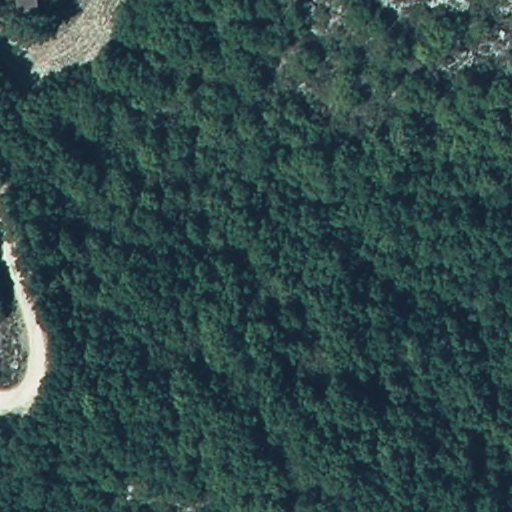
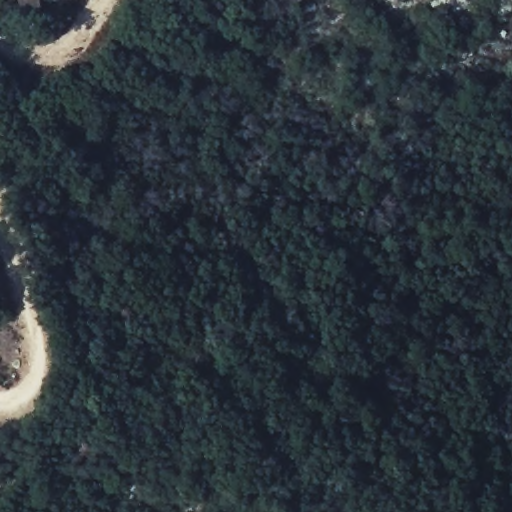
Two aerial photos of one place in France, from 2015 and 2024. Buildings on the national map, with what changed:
unchanged [(47,7),(23,11),(19,0),(45,0),(47,7)]

